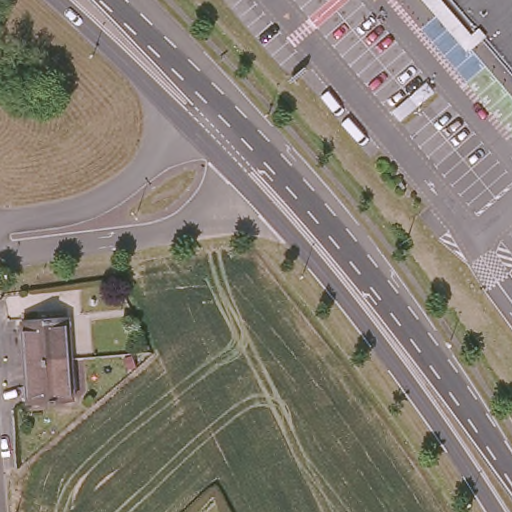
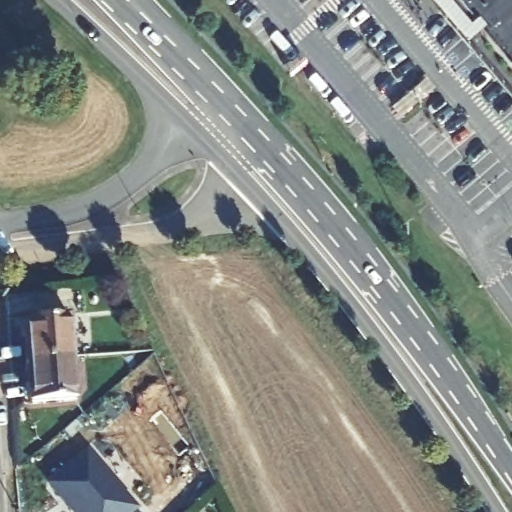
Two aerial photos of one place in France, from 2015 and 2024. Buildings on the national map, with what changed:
unchanged [(512,73),(474,30),(467,36),(435,0),(512,0),(512,73)]
unchanged [(19,320),(70,316),(72,357),(22,362),(19,320)]
unchanged [(22,362),(72,357),(75,398),(26,402),(22,362)]
new [(135,512),(68,512),(45,485),(87,448),(138,509),(135,512)]

